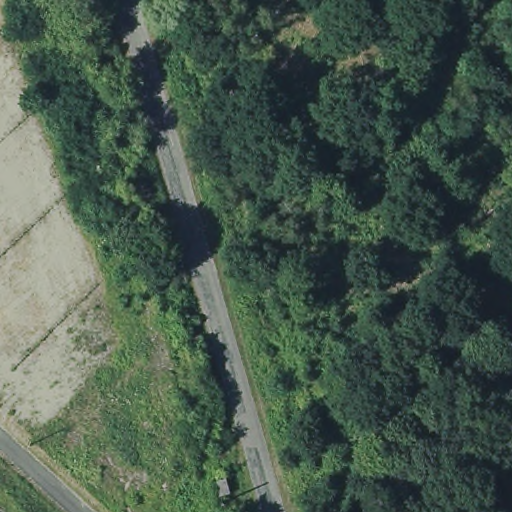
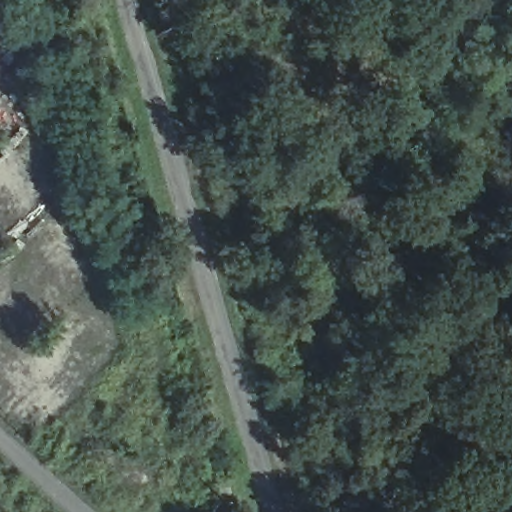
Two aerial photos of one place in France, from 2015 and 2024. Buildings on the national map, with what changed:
unchanged [(230,491),(217,493),(213,480),(226,477),(230,491)]

